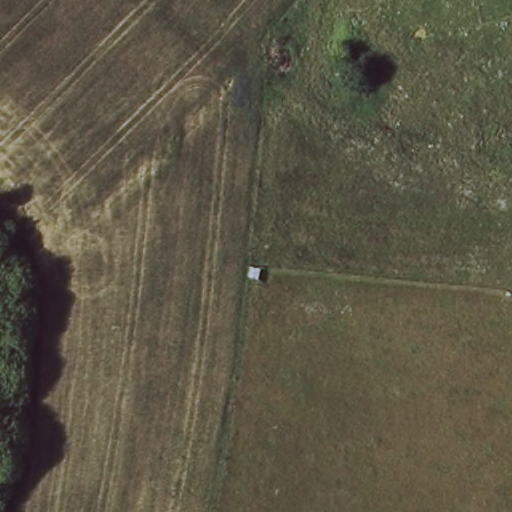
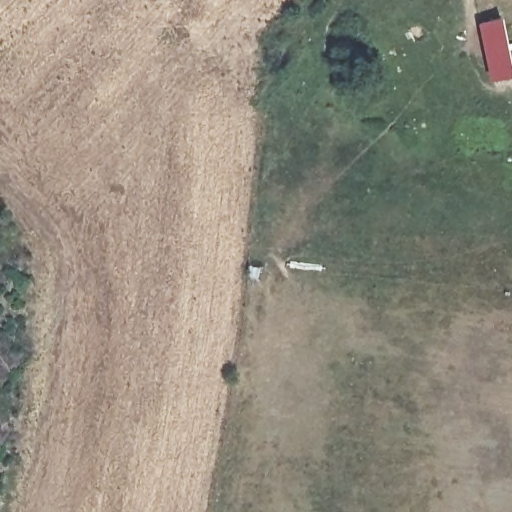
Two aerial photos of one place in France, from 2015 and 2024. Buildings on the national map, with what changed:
new [(477,23),(500,18),(512,75),(489,80),(477,23)]

